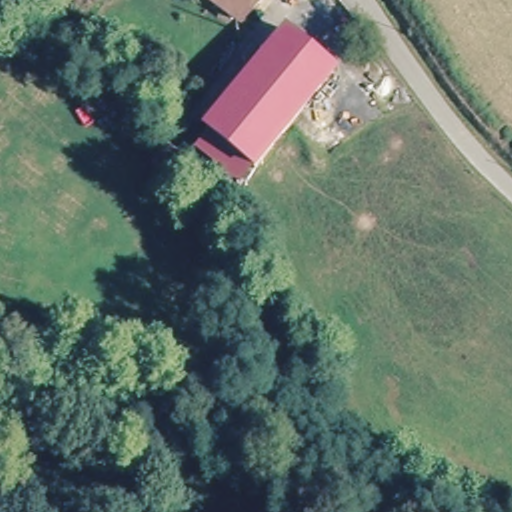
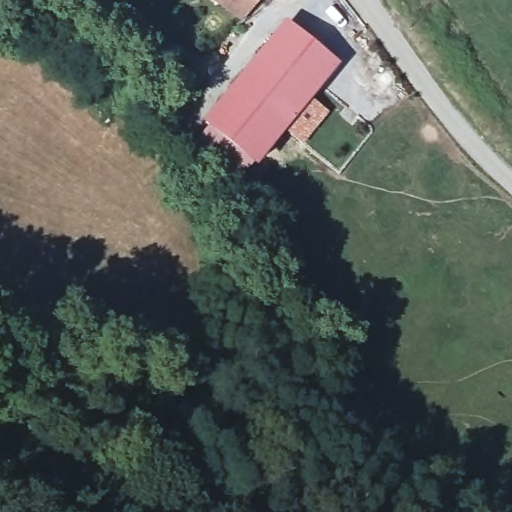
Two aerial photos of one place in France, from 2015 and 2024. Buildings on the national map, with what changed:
unchanged [(247,28),(236,21),(203,0),(259,0),(264,4),(247,28)]
unchanged [(286,30),(337,73),(256,168),(209,127),(217,115),(286,30)]

